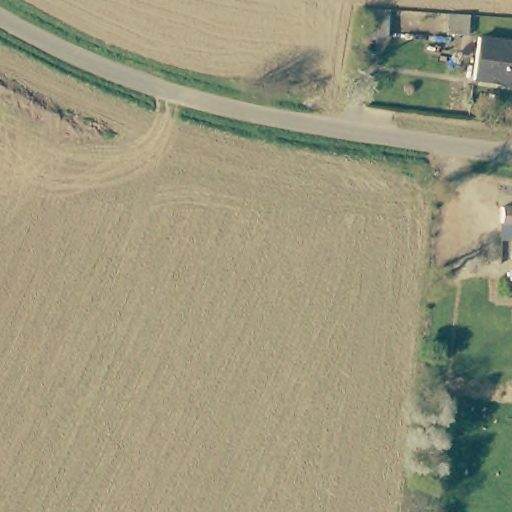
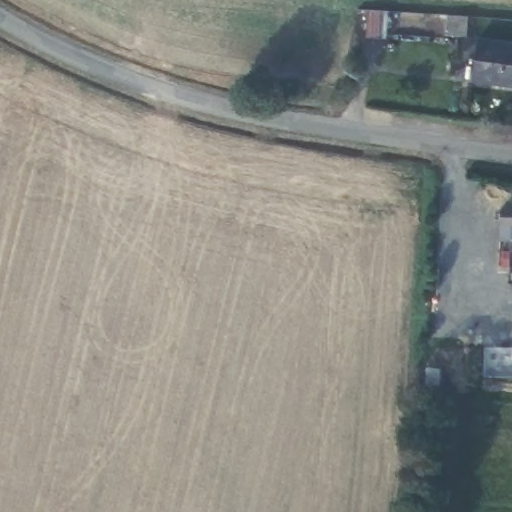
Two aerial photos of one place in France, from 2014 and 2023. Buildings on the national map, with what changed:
unchanged [(366,31),(369,4),(387,7),(384,34),(366,31)]
unchanged [(512,39),(512,80),(484,79),(486,38),(512,39)]
unchanged [(495,197),(512,198),(512,228),(494,227),(495,197)]

